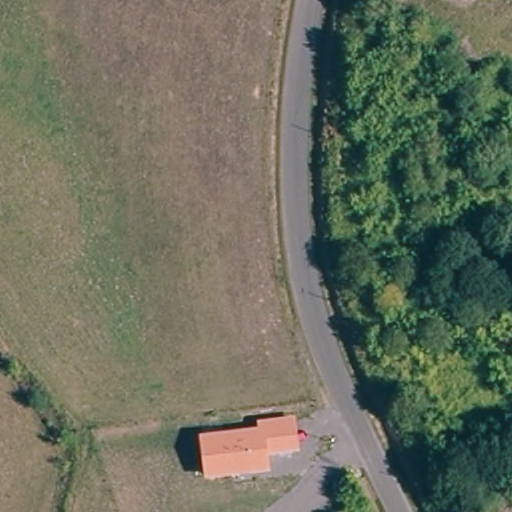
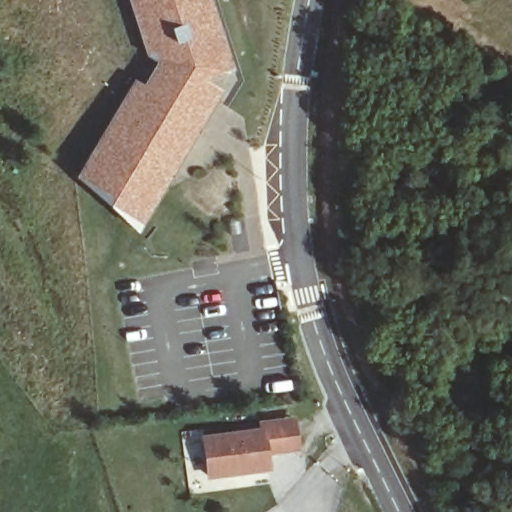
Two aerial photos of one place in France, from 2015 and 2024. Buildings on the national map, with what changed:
new [(205,80),(223,92),(138,230),(76,176),(135,79),(143,84),(152,69),(129,0),(214,0),(235,69),(205,80)]
unchanged [(258,427),(257,419),(296,414),(301,452),(268,457),(269,473),(204,481),(199,434),(258,427)]

